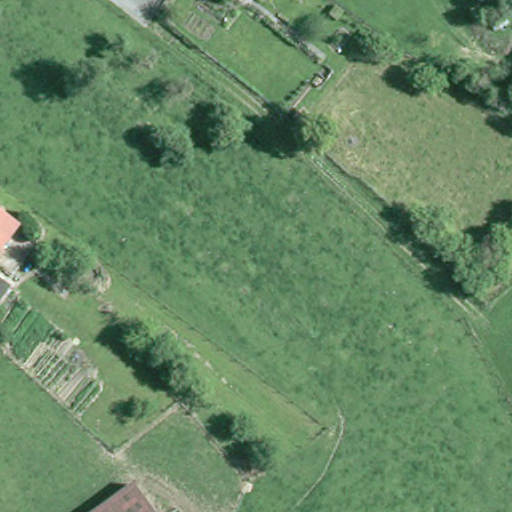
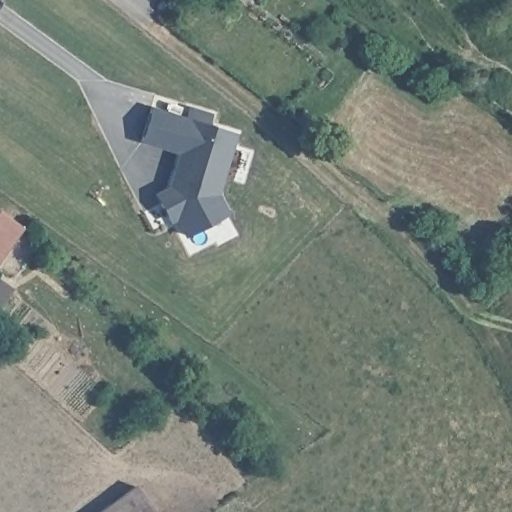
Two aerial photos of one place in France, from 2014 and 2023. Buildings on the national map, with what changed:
new [(217,195),(227,213),(185,238),(176,222),(171,225),(154,193),(168,186),(176,153),(139,143),(148,108),(236,134),(217,195)]
unchanged [(0,249),(0,215),(16,226),(0,249)]
unchanged [(0,283),(6,287),(0,295),(0,283)]
unchanged [(157,512),(97,512),(137,483),(157,512)]

